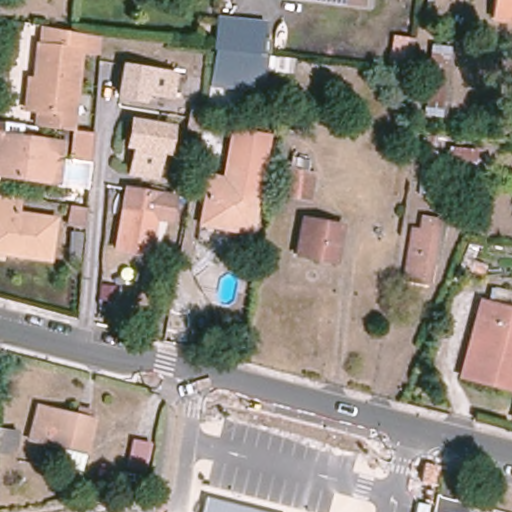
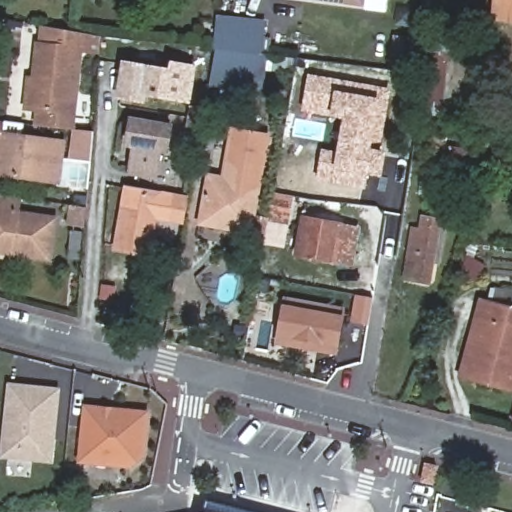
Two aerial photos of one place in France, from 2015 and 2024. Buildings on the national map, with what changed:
unchanged [(328,0),(365,0),(365,5),(328,0)]
unchanged [(488,20),(490,0),(512,0),(512,22),(488,20)]
unchanged [(261,55),(267,56),(262,90),(209,84),(217,17),(265,22),(261,55)]
unchanged [(96,53),(79,52),(70,130),(42,127),(32,126),(33,111),(21,109),(24,77),(30,77),(33,43),(36,44),(37,26),(67,31),(72,32),(97,37),(97,53),(96,53)]
unchanged [(434,45),(452,47),(446,110),(427,107),(434,45)]
unchanged [(172,96),(143,92),(142,101),(114,96),(121,62),(177,72),(172,96)]
new [(386,152),(382,177),(366,174),(363,189),(316,181),(322,149),(336,151),(342,118),(301,111),(308,73),(391,89),(380,151),(386,152)]
unchanged [(167,152),(161,152),(156,177),(125,172),(130,149),(123,147),(129,118),(172,124),(167,152)]
unchanged [(21,137),(21,140),(60,146),(55,186),(4,179),(4,176),(0,175),(0,126),(11,127),(10,136),(21,137)]
unchanged [(222,179),(231,126),(267,133),(256,185),(222,179)]
unchanged [(448,161),(451,146),(479,150),(477,164),(448,161)]
unchanged [(421,194),(427,149),(437,151),(432,195),(421,194)]
unchanged [(228,226),(197,220),(206,176),(222,179),(256,185),(247,234),(227,231),(228,226)]
unchanged [(127,187),(177,195),(172,222),(157,219),(151,256),(117,250),(127,187)]
new [(266,192),(294,196),(286,249),(257,244),(266,192)]
unchanged [(52,219),(47,258),(12,253),(13,249),(0,247),(0,195),(17,197),(15,213),(52,219)]
unchanged [(72,205),(89,207),(87,227),(70,224),(72,205)]
unchanged [(441,215),(431,278),(406,273),(414,224),(422,225),(424,212),(441,215)]
unchanged [(345,225),(338,262),(297,255),(305,217),(345,225)]
new [(347,309),(338,357),(276,347),(285,297),(347,309)]
unchanged [(468,377),(485,317),(478,315),(482,301),(512,308),(512,390),(468,377)]
new [(0,448),(7,382),(61,387),(52,463),(0,458),(0,448)]
new [(82,403),(150,410),(142,467),(76,463),(82,403)]
demolished [(32,440),(40,406),(96,418),(88,452),(32,440)]
demolished [(134,469),(140,441),(152,443),(147,472),(134,469)]
new [(205,498),(256,512),(201,512),(205,498)]

